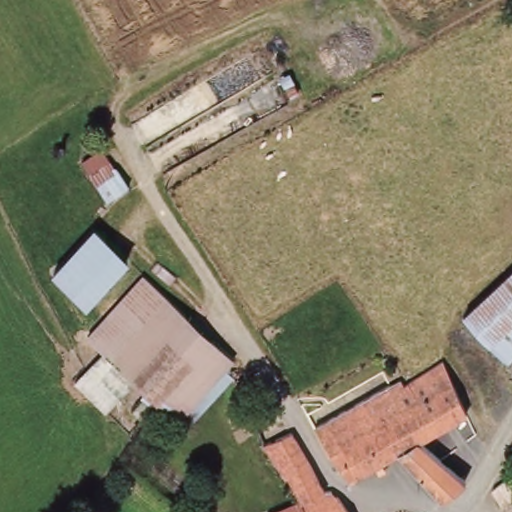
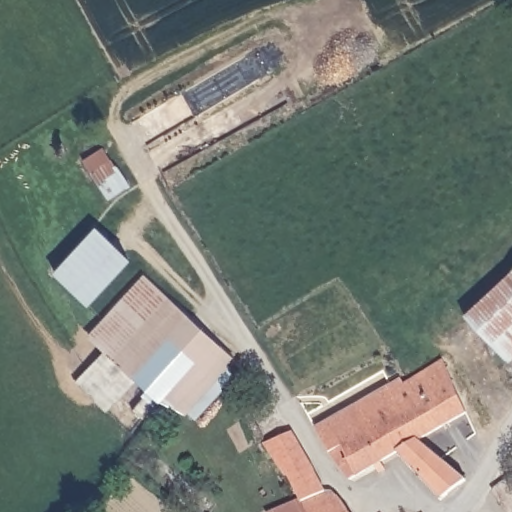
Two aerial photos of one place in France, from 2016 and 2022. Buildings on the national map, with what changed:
unchanged [(108,145),(129,184),(108,199),(79,161),(108,145)]
unchanged [(96,226),(130,256),(90,302),(53,273),(96,226)]
unchanged [(464,313),(512,267),(512,355),(506,360),(464,313)]
unchanged [(147,383),(139,377),(110,408),(79,381),(107,350),(92,336),(98,330),(147,275),(224,344),(213,353),(186,377),(168,397),(158,393),(143,411),(131,400),(147,383)]
unchanged [(213,353),(224,344),(227,347),(238,355),(232,362),(189,411),(168,397),(186,377),(213,353)]
unchanged [(408,382),(445,362),(457,356),(479,406),(469,411),(420,438),(409,445),(392,411),(323,450),(313,425),(404,376),(408,382)]
unchanged [(392,411),(409,445),(420,438),(447,462),(461,475),(438,493),(394,453),(346,479),(340,468),(334,470),(323,450),(392,411)]
unchanged [(325,492),(339,495),(349,512),(313,512),(296,472),(289,475),(267,446),(297,434),(325,492)]
unchanged [(512,473),(512,512),(511,512),(492,488),(512,473)]

